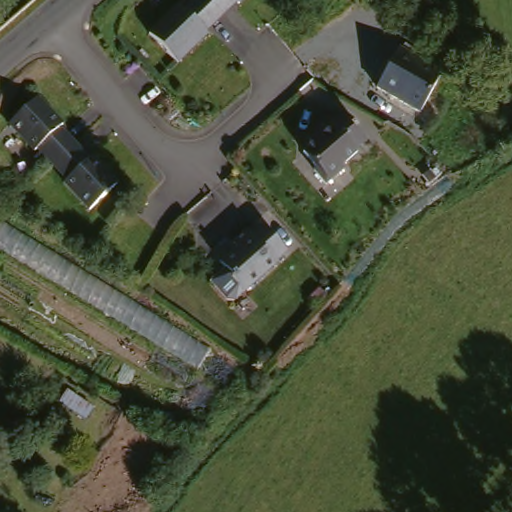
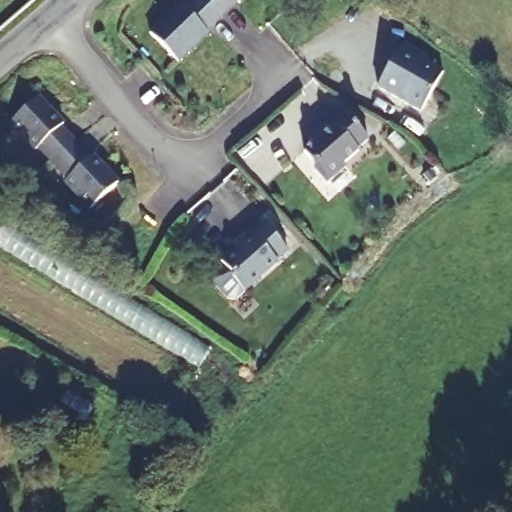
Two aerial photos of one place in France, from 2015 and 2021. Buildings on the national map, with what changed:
unchanged [(237,6),(234,3),(206,28),(212,33),(182,63),(152,30),(180,5),(186,11),(198,0),(242,0),(237,6)]
unchanged [(438,87),(413,125),(372,98),(396,60),(438,87)]
unchanged [(119,177),(88,206),(62,175),(68,170),(43,140),(37,145),(9,115),(39,89),(67,117),(62,122),(88,152),(92,148),(119,177)]
unchanged [(330,184),(312,167),(317,162),(304,149),(313,141),(311,139),(343,108),(370,136),(358,146),(362,149),(348,161),(352,164),(330,184)]
unchanged [(248,296),(220,264),(238,248),(232,242),(248,227),(255,235),(267,225),(290,251),(277,263),(279,268),(248,296)]

